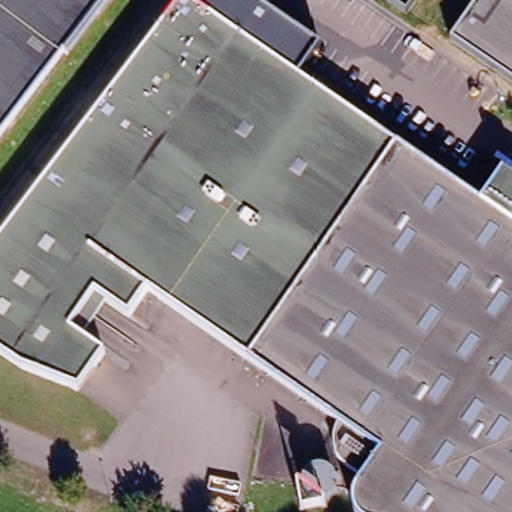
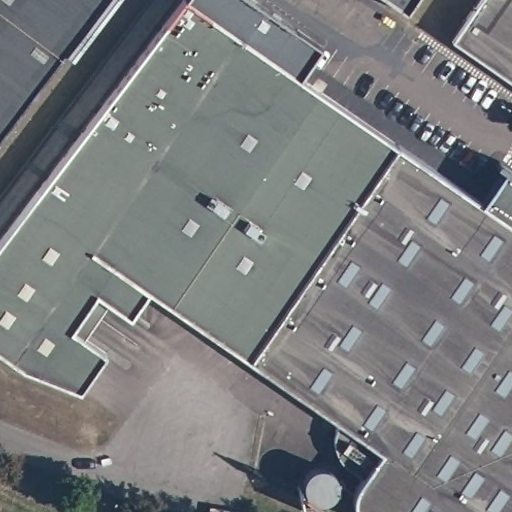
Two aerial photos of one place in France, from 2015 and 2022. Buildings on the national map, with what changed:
unchanged [(0,130),(0,0),(98,0),(0,130)]
unchanged [(456,42),(457,42),(484,0),(512,0),(512,82),(456,42)]
unchanged [(193,321),(149,291),(131,317),(96,293),(72,328),(106,352),(80,390),(15,372),(0,361),(0,233),(176,2),(346,118),(226,277),(193,321)]
unchanged [(357,512),(354,507),(353,497),(354,488),(357,481),(363,478),(352,472),(344,465),(338,452),(336,444),(336,434),(339,423),(249,361),(193,321),(226,277),(346,118),(347,118),(472,204),(494,172),(487,166),(489,162),(512,178),(512,512),(357,512)]
unchanged [(338,491),(334,497),(328,501),(321,503),(314,502),(308,498),(304,492),(303,485),(304,478),(308,472),(313,468),(320,467),(327,467),(333,471),(338,477),(339,484),(338,491)]

